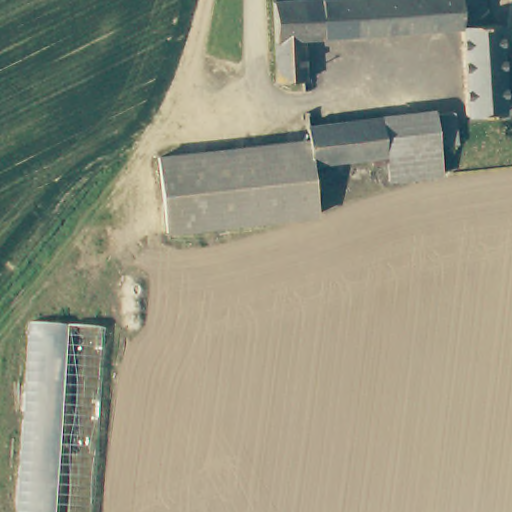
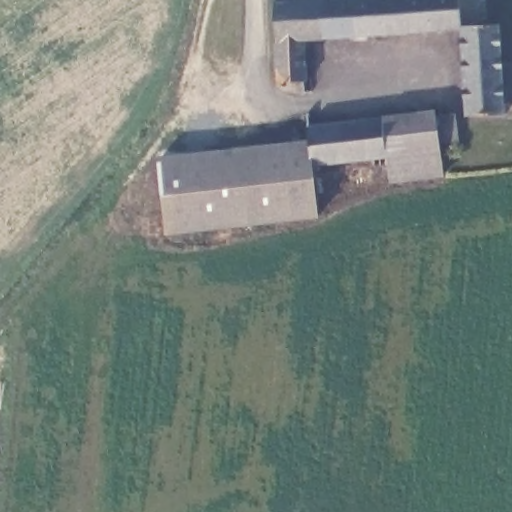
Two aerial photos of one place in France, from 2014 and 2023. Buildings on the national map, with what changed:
unchanged [(277,7),(349,0),(489,0),(493,28),(500,28),(504,62),(512,62),(512,105),(505,106),(506,120),(472,124),(462,30),(303,45),(306,87),(281,90),(277,7)]
unchanged [(453,147),(453,149),(399,154),(308,163),(307,146),(306,131),(386,124),(386,116),(457,108),(460,131),(461,145),(453,147)]
unchanged [(313,224),(165,239),(157,165),(295,148),(307,146),(308,163),(313,224)]
unchanged [(453,149),(456,181),(404,187),(399,154),(453,149)]
demolished [(106,332),(90,512),(9,512),(25,322),(106,332)]

